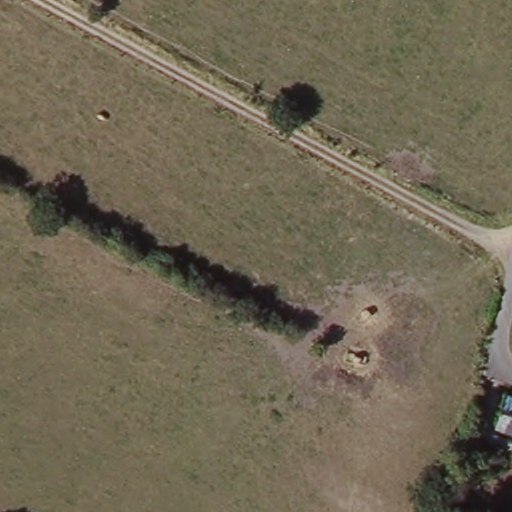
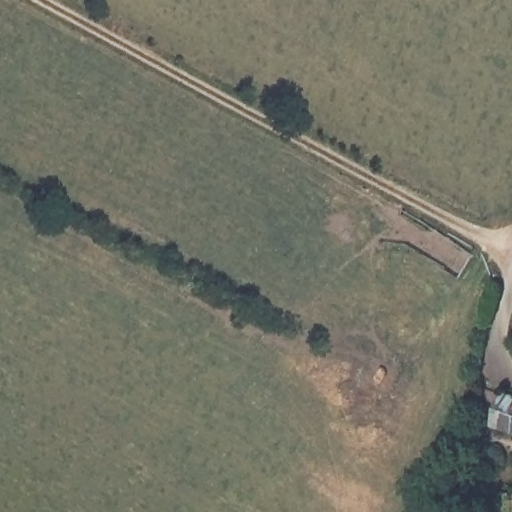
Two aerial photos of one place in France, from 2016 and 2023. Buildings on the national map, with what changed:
unchanged [(512,406),(512,441),(490,433),(502,403),(512,406)]

